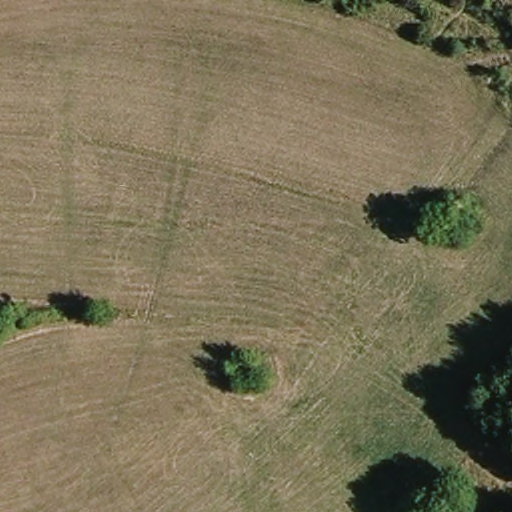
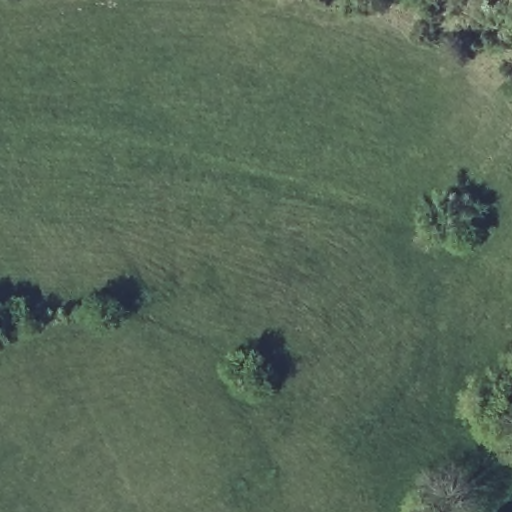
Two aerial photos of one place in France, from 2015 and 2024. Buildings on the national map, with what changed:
[]

